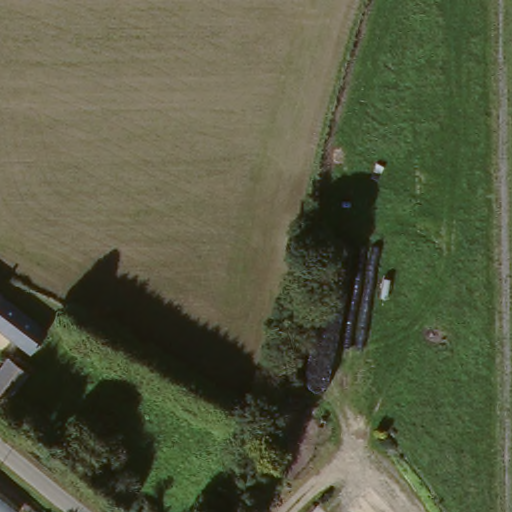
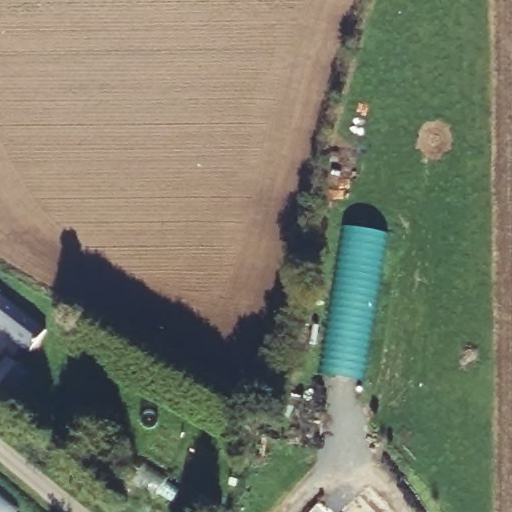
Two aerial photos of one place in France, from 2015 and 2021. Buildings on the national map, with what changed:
new [(344,229),(383,236),(359,382),(323,374),(344,229)]
unchanged [(4,295),(0,302),(0,292),(4,295)]
unchanged [(46,339),(34,355),(0,329),(0,303),(46,339)]
unchanged [(28,375),(4,414),(0,411),(0,372),(8,361),(28,375)]
unchanged [(19,506),(13,512),(0,512),(0,490),(19,506)]

